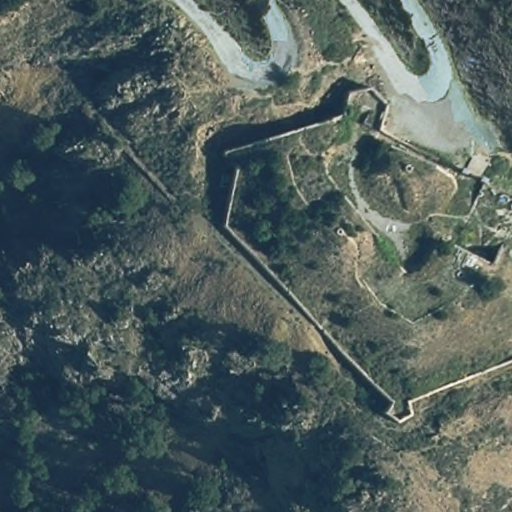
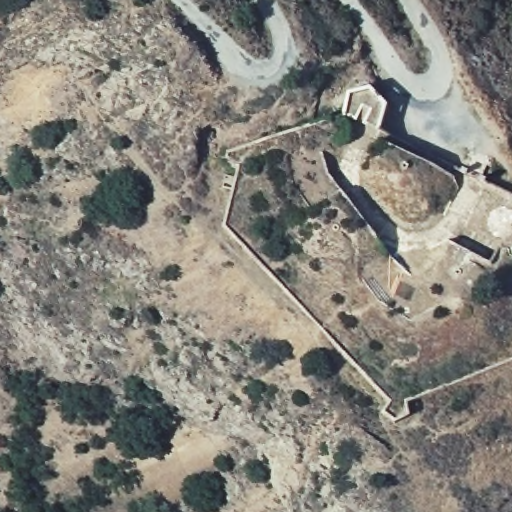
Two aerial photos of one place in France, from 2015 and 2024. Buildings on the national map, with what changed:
unchanged [(395,427),(385,415),(392,405),(289,299),(227,232),(240,170),(226,169),(228,152),(263,142),(315,126),(345,116),(348,92),(374,90),(385,109),(379,139),(402,144),(465,176),(447,217),(466,227),(485,188),(512,200),(512,367),(408,405),(409,420),(395,427)]

